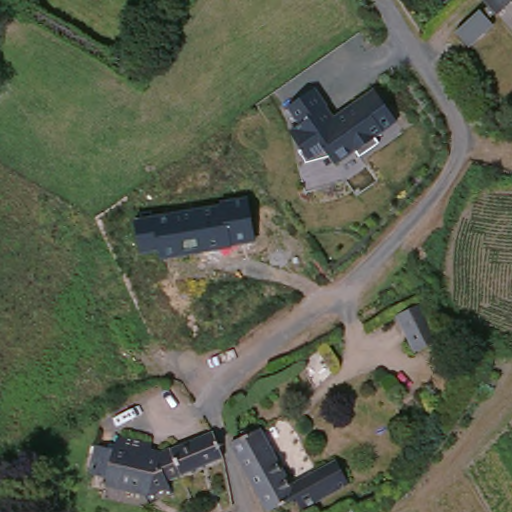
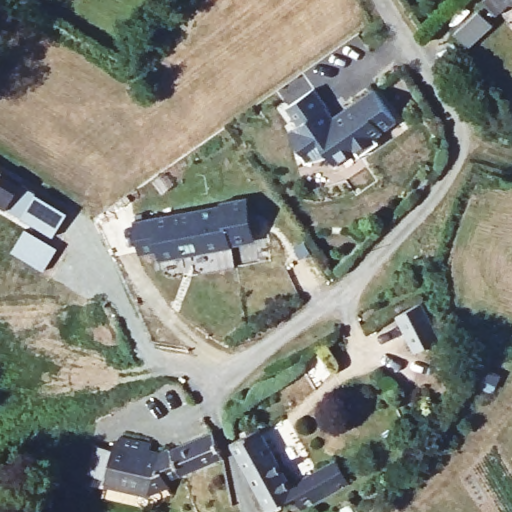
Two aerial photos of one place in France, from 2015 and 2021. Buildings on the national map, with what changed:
unchanged [(476,12),(479,15),(488,6),(486,4),(483,0),(512,0),(512,3),(507,2),(502,7),(487,21),(490,27),(487,30),(468,47),(455,31),(473,15),(476,12)]
unchanged [(334,166),(325,156),(313,163),(292,131),(298,126),(285,108),(311,88),(333,117),(372,90),(395,119),(334,166)]
new [(66,212),(52,238),(0,208),(0,174),(66,212)]
unchanged [(159,259),(157,249),(139,252),(133,220),(247,198),(255,241),(159,259)]
new [(24,229),(56,248),(43,271),(11,253),(24,229)]
unchanged [(394,320),(419,307),(437,345),(411,358),(394,320)]
demolished [(214,373),(197,383),(185,366),(200,357),(202,356),(206,359),(214,373)]
unchanged [(295,498),(290,500),(274,508),(269,511),(231,442),(234,440),(257,428),(289,484),(337,457),(350,479),(314,500),(300,508),(297,502),(295,498)]
unchanged [(114,451),(118,438),(149,445),(148,455),(158,457),(205,437),(211,435),(221,461),(214,464),(165,485),(167,490),(148,498),(104,487),(104,481),(86,476),(93,447),(94,447),(114,451)]

